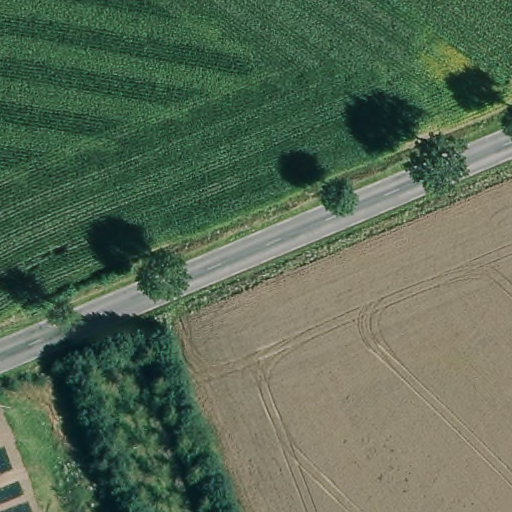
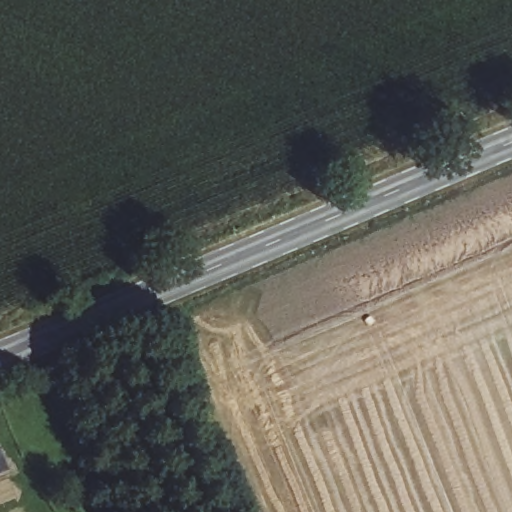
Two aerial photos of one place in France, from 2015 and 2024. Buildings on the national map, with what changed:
[]

